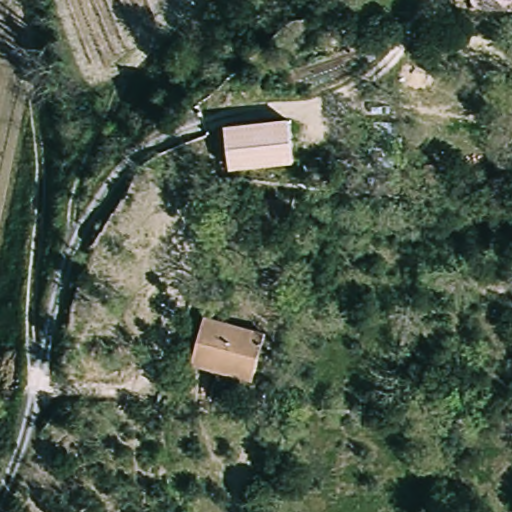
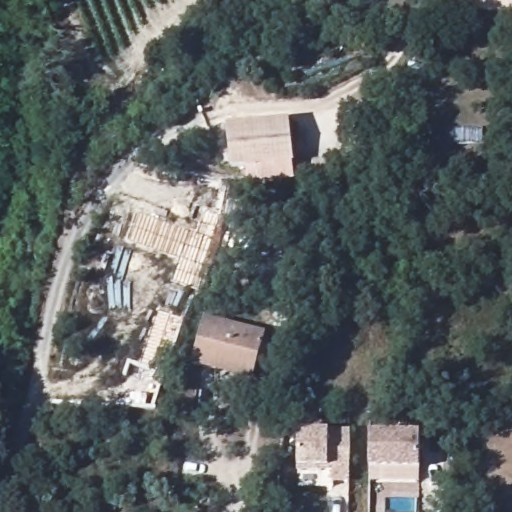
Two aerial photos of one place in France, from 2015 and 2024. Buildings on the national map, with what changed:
unchanged [(290,119),(294,164),(231,171),(227,127),(290,119)]
unchanged [(216,372),(190,366),(202,315),(269,333),(258,369),(254,382),(216,372)]
new [(297,467),(299,429),(328,430),(350,430),(350,481),(332,481),(332,472),(298,472),(297,467)]
new [(419,432),(420,470),(370,469),(371,431),(419,432)]

